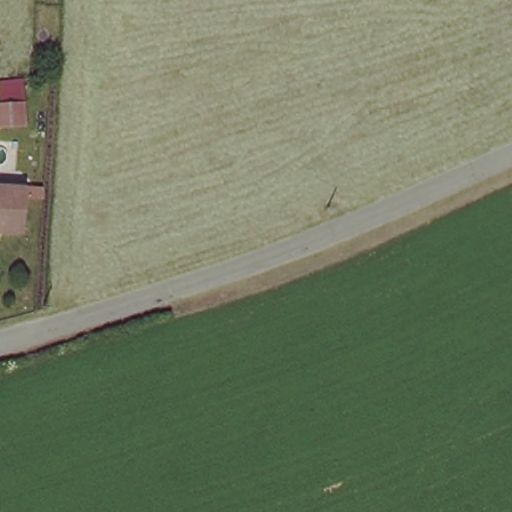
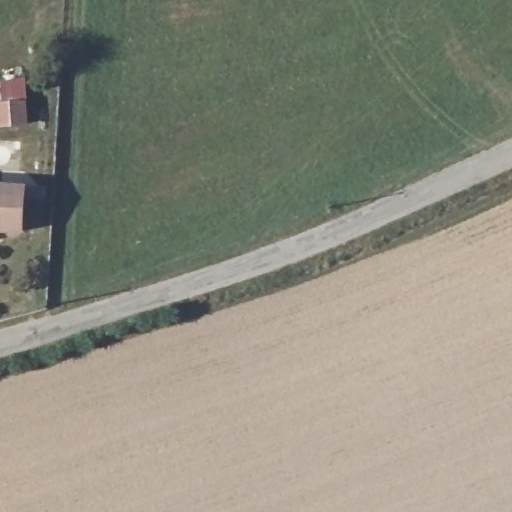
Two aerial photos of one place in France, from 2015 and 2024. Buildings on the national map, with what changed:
unchanged [(28,100),(30,129),(0,133),(0,104),(28,100)]
unchanged [(23,186),(20,228),(0,227),(0,185),(23,186)]

